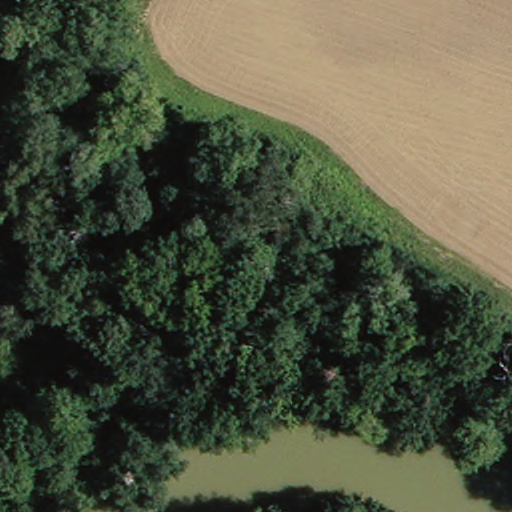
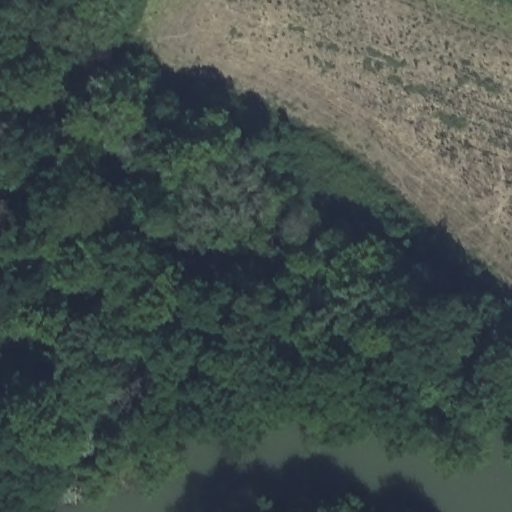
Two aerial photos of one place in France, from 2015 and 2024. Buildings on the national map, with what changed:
unchanged [(307,183),(292,207),(268,193),(284,168),(307,183)]

